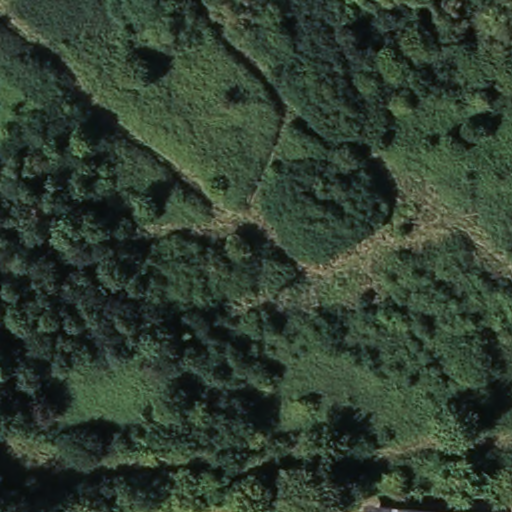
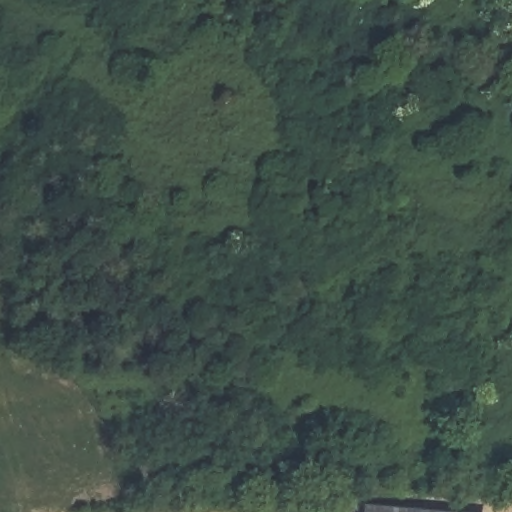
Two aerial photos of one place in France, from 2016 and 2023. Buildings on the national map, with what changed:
unchanged [(366,512),(366,506),(457,512),(366,512)]

